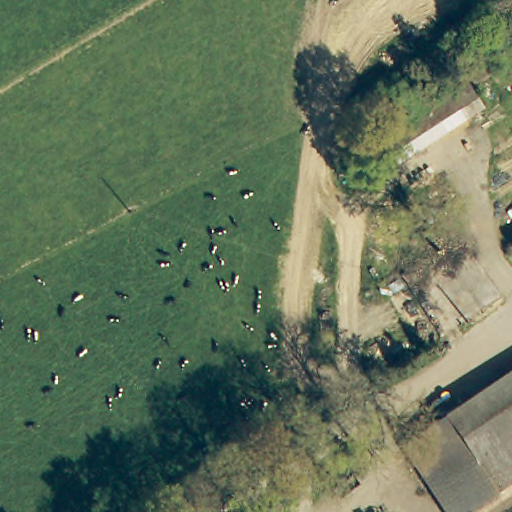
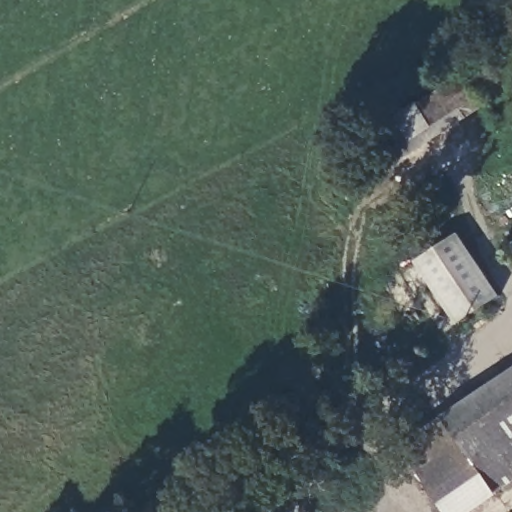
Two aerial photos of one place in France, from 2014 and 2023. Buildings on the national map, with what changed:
unchanged [(455,76),(478,110),(397,165),(380,131),(455,76)]
new [(459,326),(415,262),(460,233),(501,296),(459,326)]
unchanged [(497,257),(512,247),(512,279),(497,257)]
unchanged [(495,492),(447,419),(512,376),(512,480),(495,492)]
unchanged [(495,492),(498,496),(475,512),(446,512),(402,449),(447,419),(495,492)]

